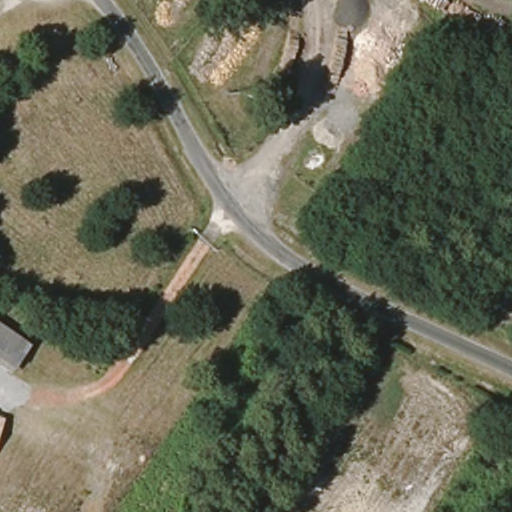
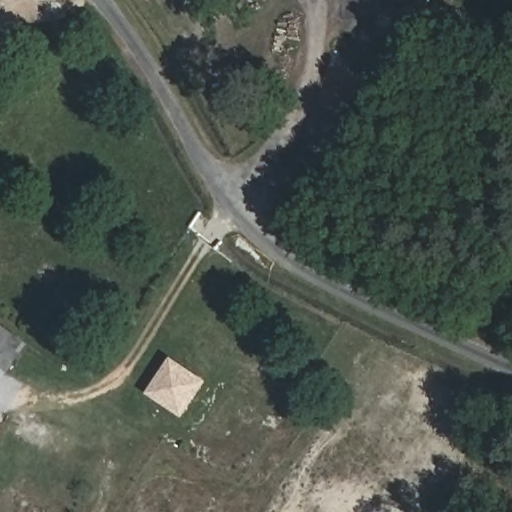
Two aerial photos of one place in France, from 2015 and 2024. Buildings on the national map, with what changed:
unchanged [(0,360),(0,329),(25,348),(10,368),(0,360)]
new [(148,389),(170,357),(207,382),(182,418),(150,397),(152,393),(148,389)]
unchanged [(0,428),(0,423),(2,424),(0,428)]
demolished [(0,439),(0,427),(5,431),(0,439)]

